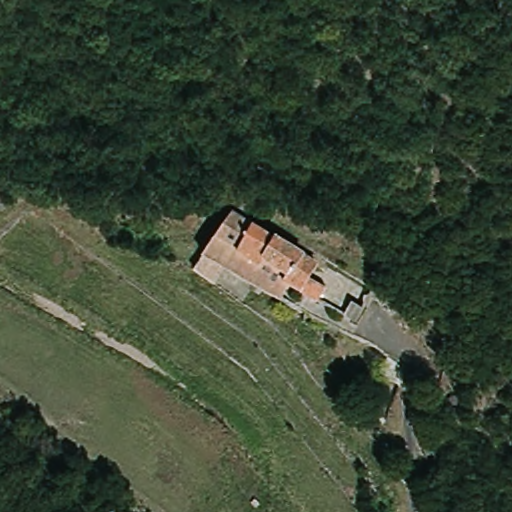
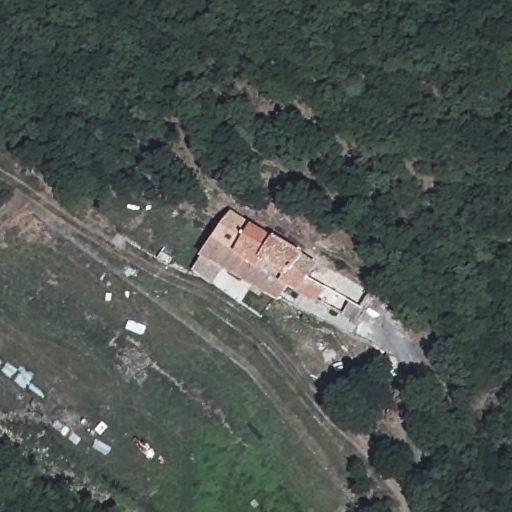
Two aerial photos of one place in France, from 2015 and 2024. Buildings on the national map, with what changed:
unchanged [(233,207),(320,263),(313,277),(331,289),(320,306),(289,289),(282,303),(201,260),(233,207)]
unchanged [(353,305),(367,312),(359,325),(346,319),(353,305)]

